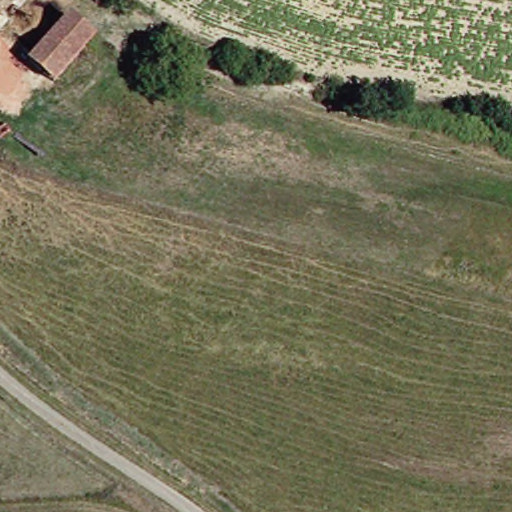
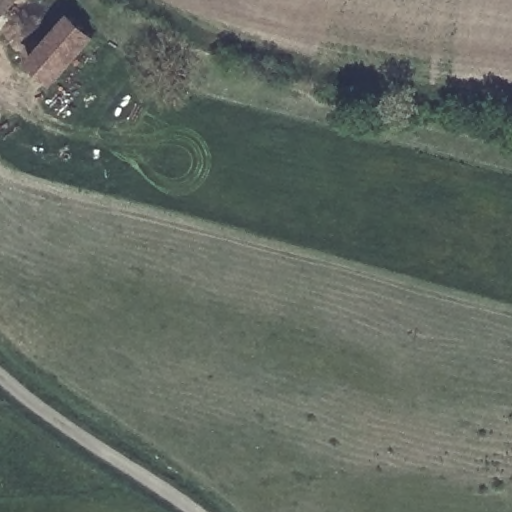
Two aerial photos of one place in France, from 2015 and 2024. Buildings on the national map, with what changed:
unchanged [(2,0),(0,2),(0,0),(2,0)]
unchanged [(61,15),(85,36),(45,83),(21,61),(61,15)]

